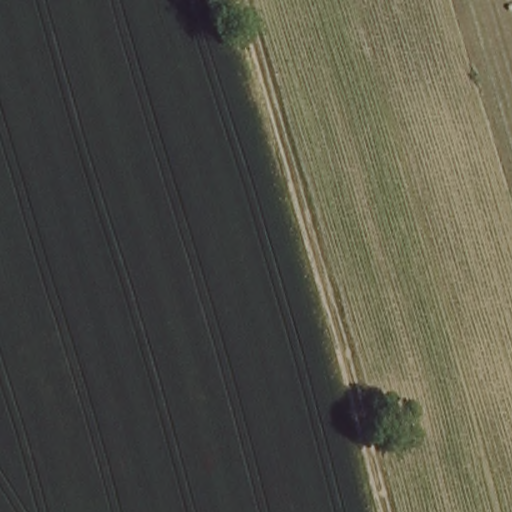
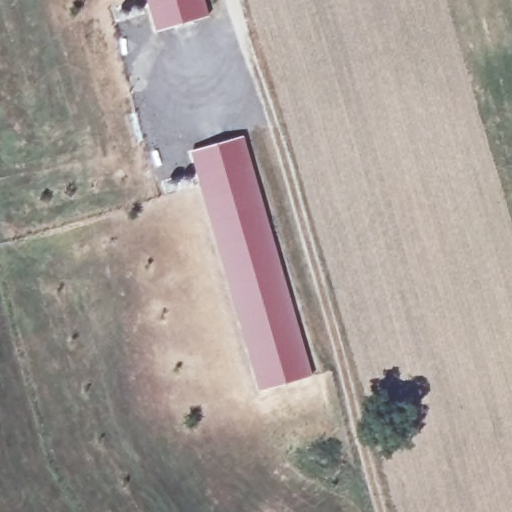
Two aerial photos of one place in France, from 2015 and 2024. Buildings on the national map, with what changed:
new [(153,32),(144,0),(206,0),(210,15),(153,32)]
new [(244,134),(313,375),(257,391),(189,150),(244,134)]

